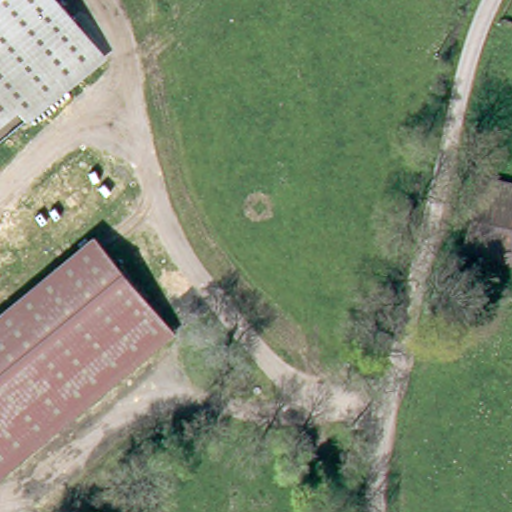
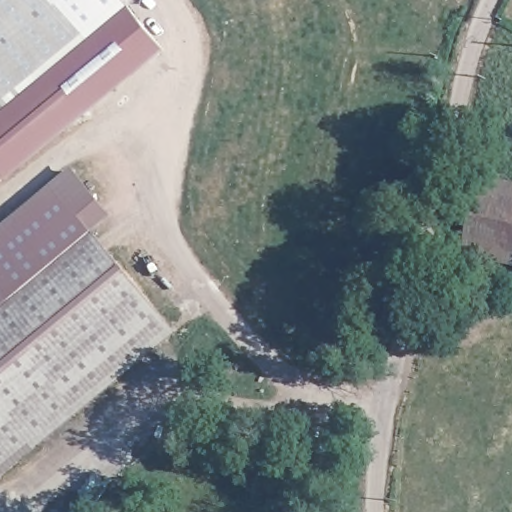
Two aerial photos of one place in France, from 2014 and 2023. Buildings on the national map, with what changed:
unchanged [(72,0),(112,48),(32,115),(13,96),(0,108),(0,0),(72,0)]
new [(128,2),(165,47),(7,176),(0,168),(0,108),(13,96),(32,115),(112,48),(95,28),(128,2)]
new [(72,167),(112,216),(93,232),(0,309),(0,226),(72,167)]
unchanged [(474,175),(512,182),(512,256),(460,247),(474,175)]
unchanged [(175,333),(0,476),(0,309),(93,232),(175,333)]

